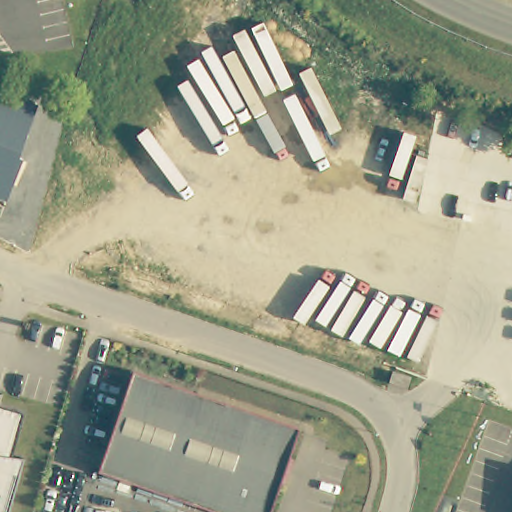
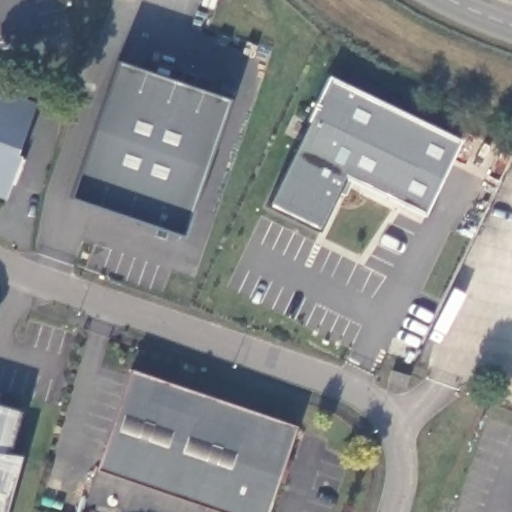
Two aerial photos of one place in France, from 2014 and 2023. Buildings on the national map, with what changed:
new [(256,89),(199,70),(196,88),(182,83),(190,50),(203,55),(213,27),(271,47),(256,89)]
new [(70,199),(118,62),(232,100),(184,236),(70,199)]
new [(457,140),(424,215),(344,177),(318,231),(268,205),(330,77),(457,140)]
unchanged [(0,198),(0,89),(35,102),(16,159),(19,159),(4,199),(0,198)]
unchanged [(268,512),(216,512),(95,470),(130,370),(297,427),(268,512)]
unchanged [(19,411),(7,455),(20,457),(6,512),(0,512),(0,406),(19,411)]

